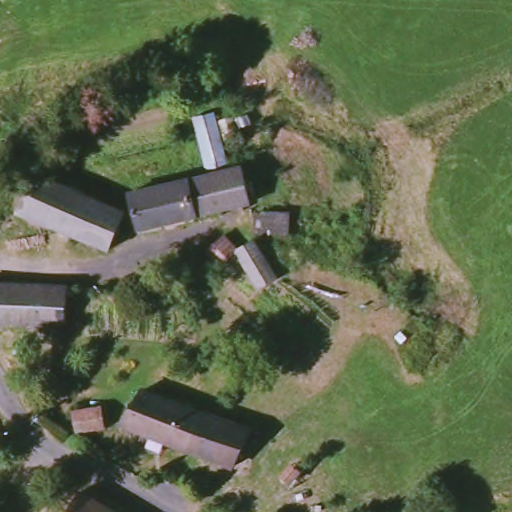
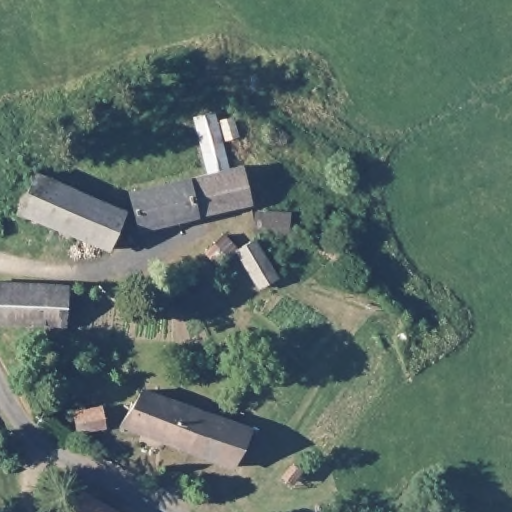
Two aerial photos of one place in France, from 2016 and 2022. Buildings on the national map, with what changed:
unchanged [(220,111),(232,159),(205,164),(197,119),(220,111)]
unchanged [(242,164),(252,202),(223,207),(214,172),(242,164)]
unchanged [(125,210),(108,248),(20,209),(38,170),(125,210)]
unchanged [(132,192),(200,175),(214,172),(223,207),(201,212),(141,227),(132,192)]
unchanged [(237,246),(217,262),(205,247),(224,232),(237,246)]
unchanged [(279,277),(261,287),(237,250),(256,239),(279,277)]
unchanged [(69,327),(0,323),(0,283),(72,286),(69,327)]
unchanged [(127,423),(144,386),(189,402),(174,442),(127,423)]
unchanged [(209,468),(212,458),(174,442),(189,402),(245,423),(257,428),(237,480),(209,468)]
unchanged [(108,403),(109,424),(82,424),(82,403),(108,403)]
unchanged [(73,512),(84,492),(119,512),(73,512)]

